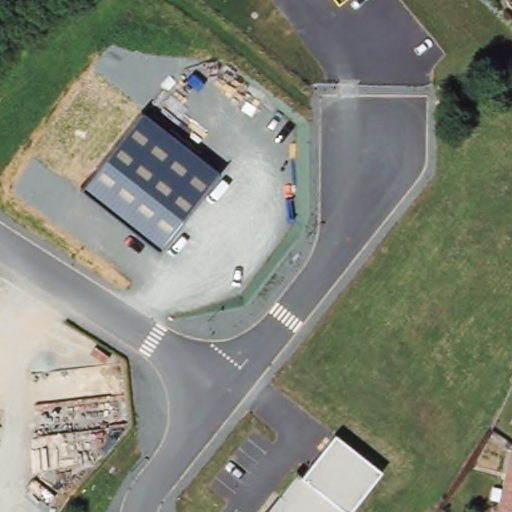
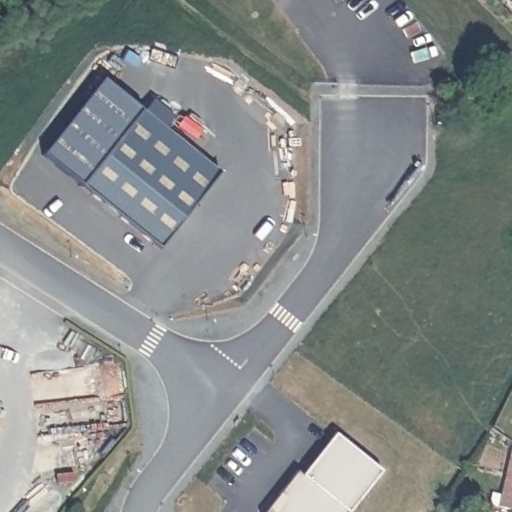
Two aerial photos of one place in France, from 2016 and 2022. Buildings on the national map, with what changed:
unchanged [(338,2),(336,0),(340,0),(338,2)]
new [(81,187),(41,156),(102,81),(141,110),(81,187)]
unchanged [(220,173),(158,249),(81,187),(141,110),(220,173)]
unchanged [(335,434),(382,472),(350,512),(264,512),(297,469),(303,474),(335,434)]
unchanged [(506,468),(499,463),(511,445),(512,446),(512,509),(499,505),(506,468)]

